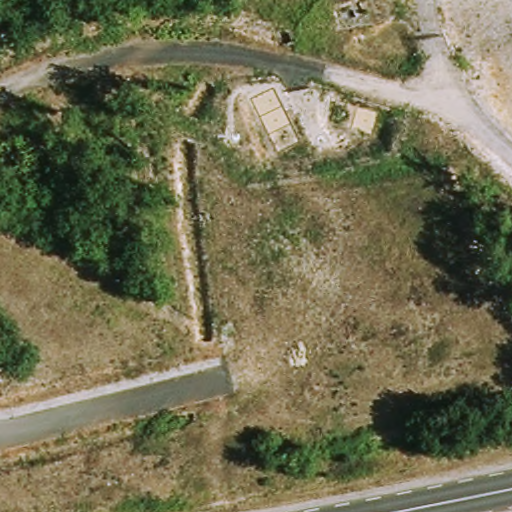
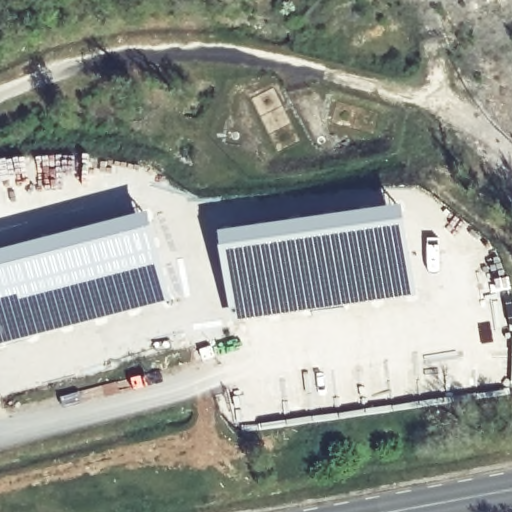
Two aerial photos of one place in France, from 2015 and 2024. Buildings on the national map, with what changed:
new [(407,204),(415,299),(236,321),(233,310),(231,310),(223,268),(218,228),(407,204)]
new [(171,259),(178,257),(181,271),(186,270),(191,299),(116,316),(0,346),(0,248),(150,210),(171,259)]

